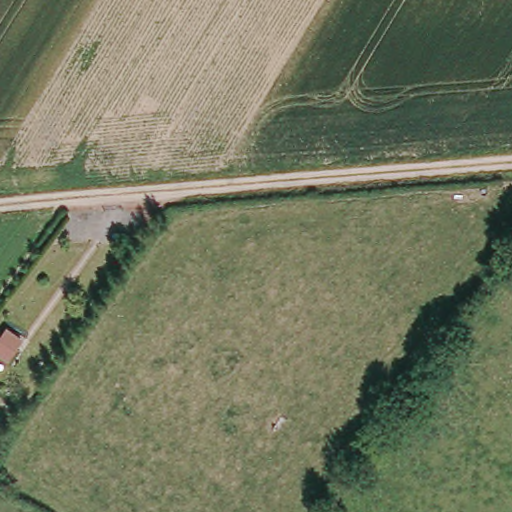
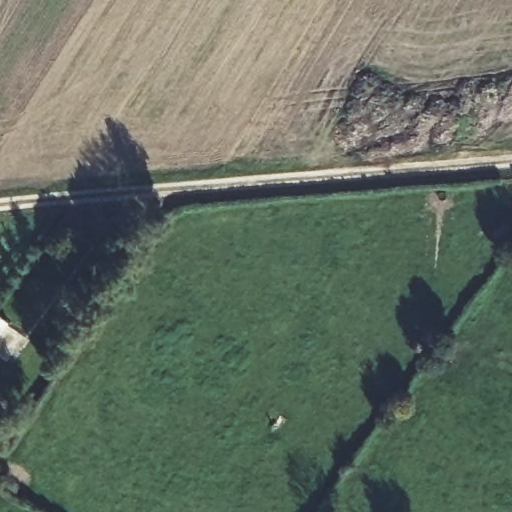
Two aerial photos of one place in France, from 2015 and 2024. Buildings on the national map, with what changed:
unchanged [(22,341),(8,359),(0,353),(0,342),(7,331),(22,341)]

